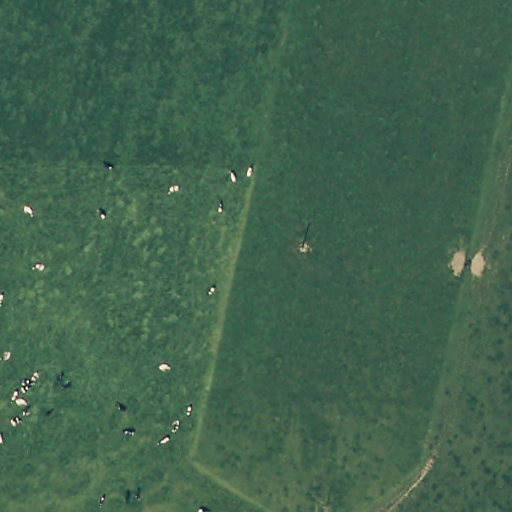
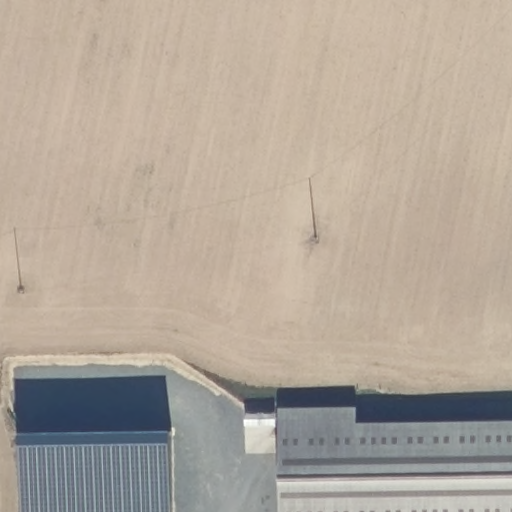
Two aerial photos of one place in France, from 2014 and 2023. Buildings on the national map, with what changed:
new [(278,408),(357,406),(357,423),(512,419),(512,512),(280,512),(278,408)]

